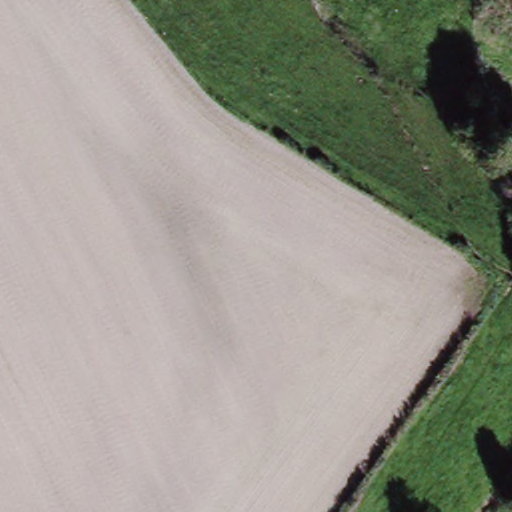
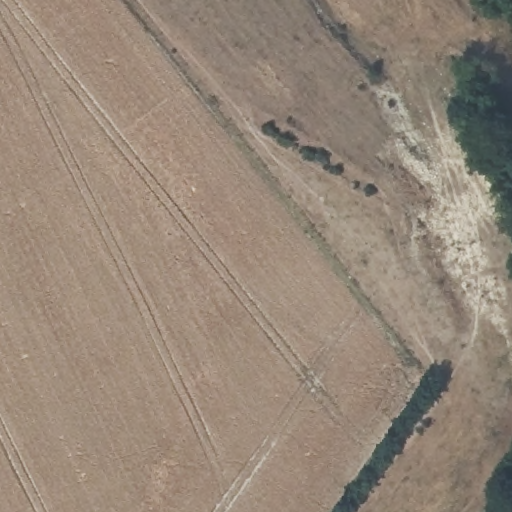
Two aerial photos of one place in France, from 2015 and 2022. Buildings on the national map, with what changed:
[]

